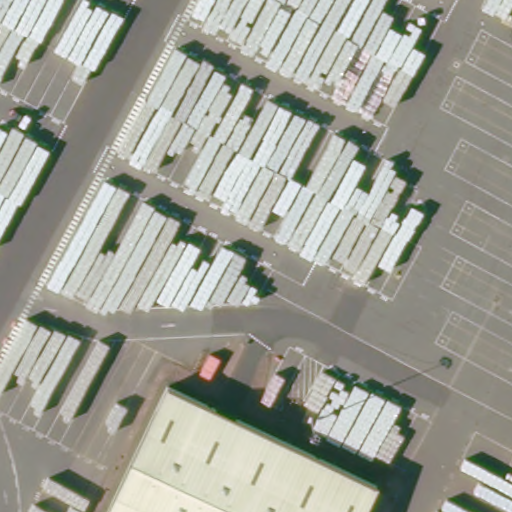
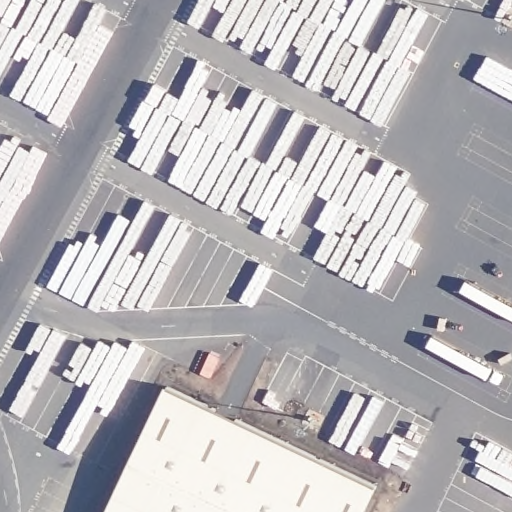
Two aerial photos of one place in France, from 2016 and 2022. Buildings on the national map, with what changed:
unchanged [(165,387),(378,487),(366,512),(108,512),(165,387)]

